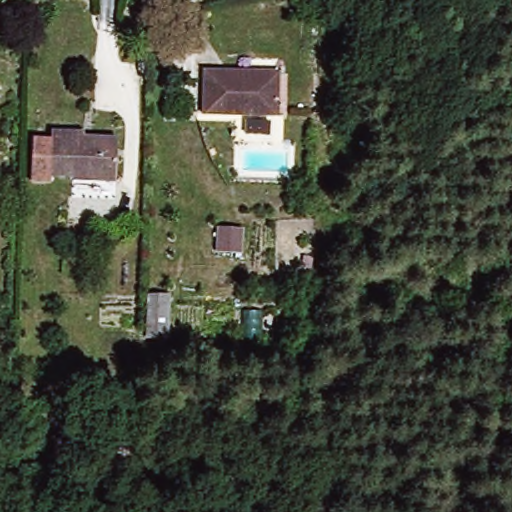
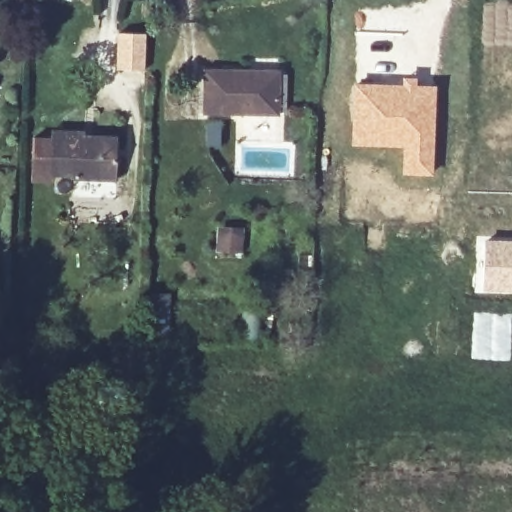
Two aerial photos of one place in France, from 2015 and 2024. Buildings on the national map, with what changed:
unchanged [(280,116),(210,113),(211,71),(281,73),(280,116)]
new [(352,81),(401,83),(401,75),(417,76),(417,83),(437,84),(433,175),(401,174),(401,147),(351,145),(352,81)]
unchanged [(35,184),(34,140),(54,139),(54,131),(122,131),(122,176),(81,176),(81,170),(54,170),(54,183),(35,184)]
new [(512,244),(512,288),(485,287),(487,243),(512,244)]

